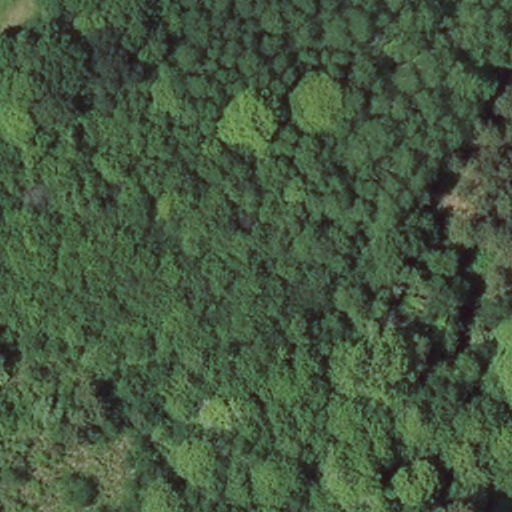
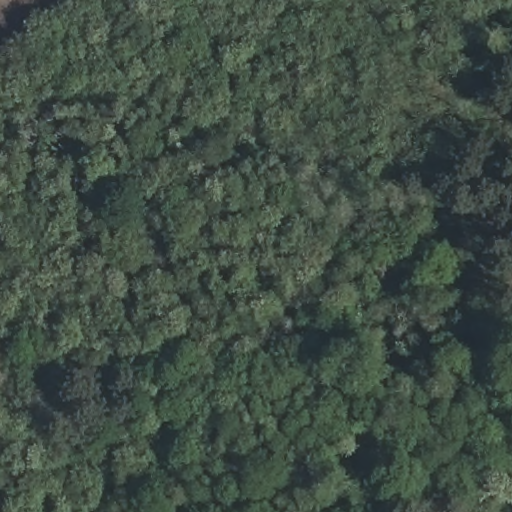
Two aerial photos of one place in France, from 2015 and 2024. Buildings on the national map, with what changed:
[]

